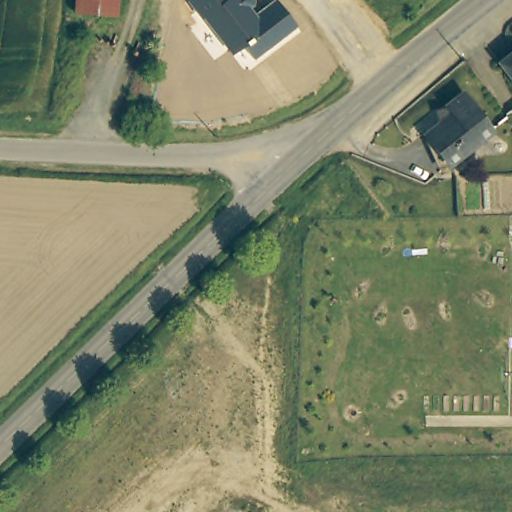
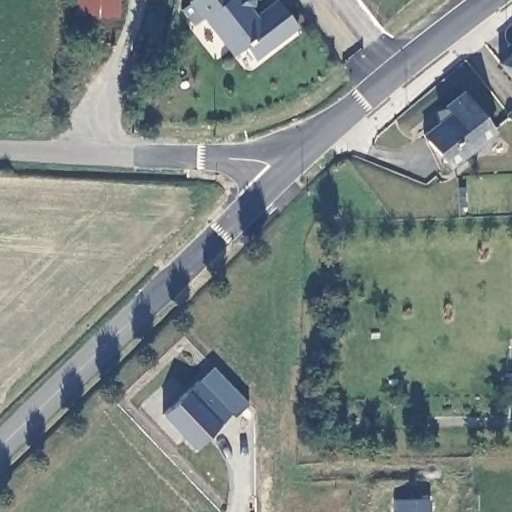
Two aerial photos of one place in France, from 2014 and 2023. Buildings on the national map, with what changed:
unchanged [(102,11),(74,10),(74,9),(75,0),(116,0),(115,12),(102,11)]
unchanged [(245,47),(232,56),(188,0),(256,0),(254,6),(252,9),(256,14),(274,0),(277,0),(297,27),(255,60),(245,47)]
unchanged [(512,56),(512,79),(501,64),(512,56)]
unchanged [(468,95),(471,99),(468,102),(495,136),(452,168),(432,141),(430,142),(425,137),(454,116),(449,110),(468,95)]
new [(195,447),(164,415),(188,391),(200,378),(215,365),(251,401),(235,416),(231,412),(219,424),(195,447)]

